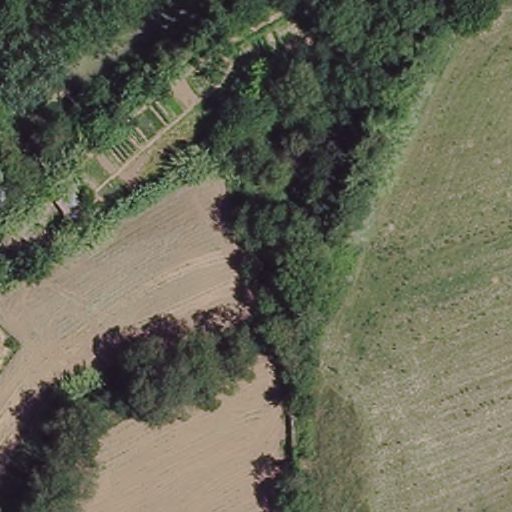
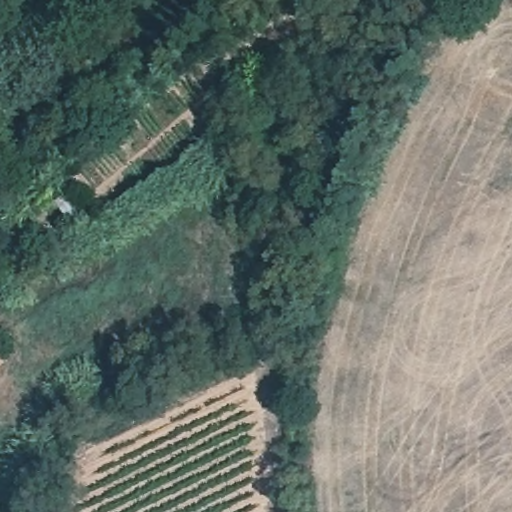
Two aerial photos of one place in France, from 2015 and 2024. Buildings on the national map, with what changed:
unchanged [(71,185),(90,214),(67,229),(52,202),(71,185)]

